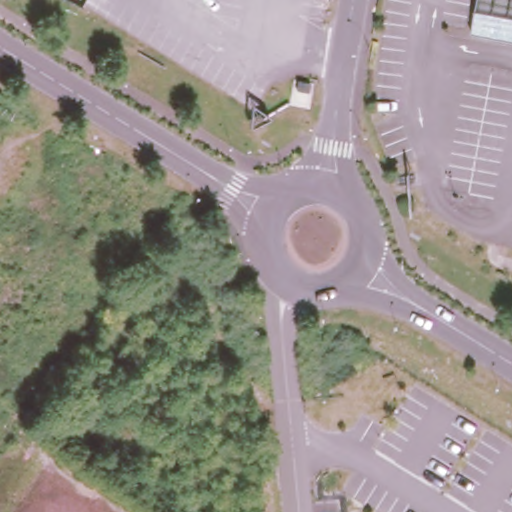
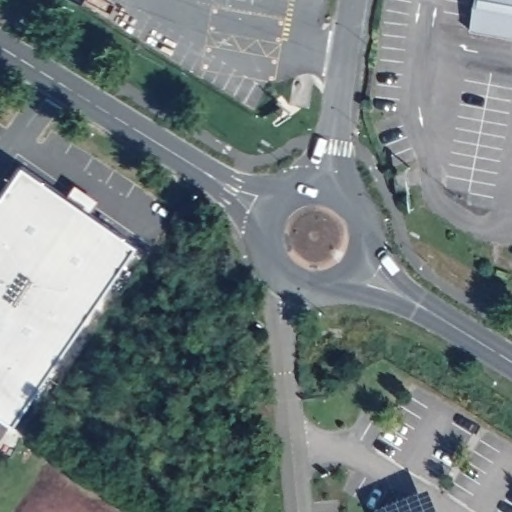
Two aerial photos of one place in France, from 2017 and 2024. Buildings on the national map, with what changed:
unchanged [(472,31),(477,0),(512,0),(512,38),(472,31)]
new [(11,425),(0,418),(0,194),(20,165),(136,245),(11,425)]

